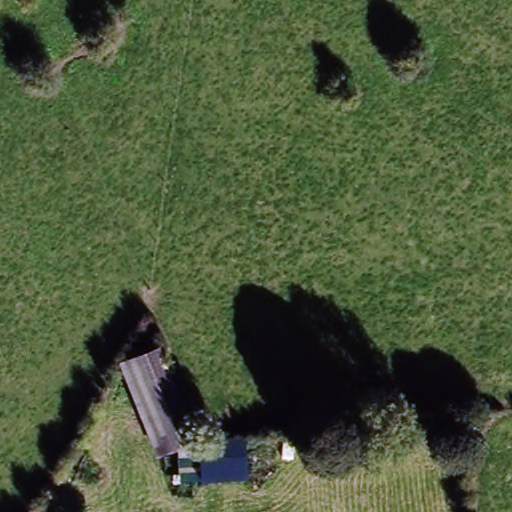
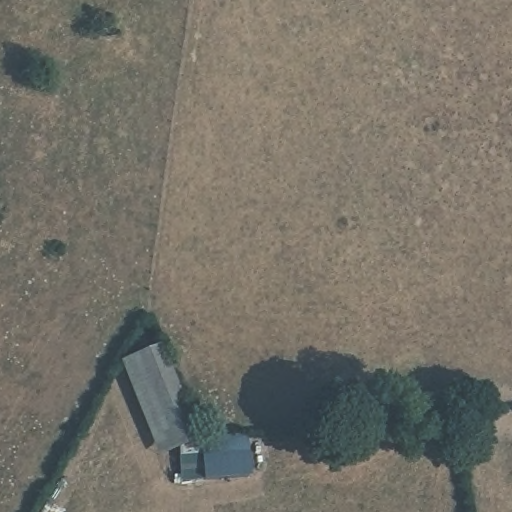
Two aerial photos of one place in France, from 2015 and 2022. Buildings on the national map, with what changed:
unchanged [(200,443),(245,438),(248,478),(180,484),(178,449),(158,459),(118,363),(159,346),(200,443)]

